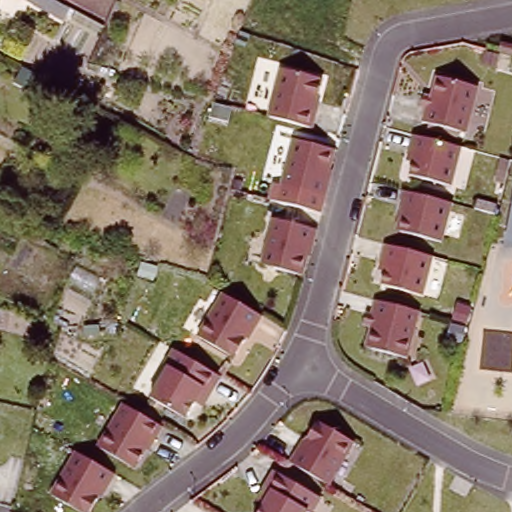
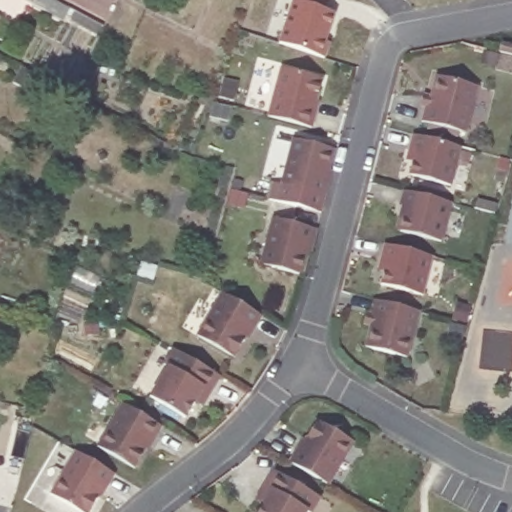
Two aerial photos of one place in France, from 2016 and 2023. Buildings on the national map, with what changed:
unchanged [(69,20),(32,0),(61,0),(76,8),(69,20)]
new [(283,0),(292,3),(293,0),(328,0),(325,11),(334,14),(325,41),(332,44),(326,59),(266,38),(280,0),(283,0)]
unchanged [(284,64),(324,76),(313,124),(271,115),(284,64)]
unchanged [(441,75),(476,84),(466,131),(429,119),(441,75)]
unchanged [(419,135),(462,145),(452,182),(409,174),(419,135)]
unchanged [(296,137),(337,147),(326,192),(286,182),(296,137)]
unchanged [(409,191),(450,202),(441,240),(400,227),(409,191)]
unchanged [(276,217),(315,226),(306,271),(268,265),(276,217)]
unchanged [(393,245),(432,257),(423,292),(382,283),(393,245)]
unchanged [(261,310),(254,323),(252,322),(236,352),(198,332),(223,289),(261,310)]
unchanged [(380,297),(421,312),(408,357),(367,343),(380,297)]
unchanged [(221,377),(204,407),(197,402),(187,419),(151,399),(169,367),(165,365),(173,350),(221,377)]
unchanged [(164,423),(156,437),(155,436),(139,467),(101,446),(125,402),(164,423)]
unchanged [(292,460),(299,446),(301,447),(318,417),(355,437),(331,482),(292,460)]
unchanged [(117,471),(109,485),(111,486),(94,512),(88,512),(55,494),(79,451),(117,471)]
unchanged [(262,502),(255,498),(272,468),(320,495),(311,511),(307,508),(305,512),(257,512),(262,502)]

